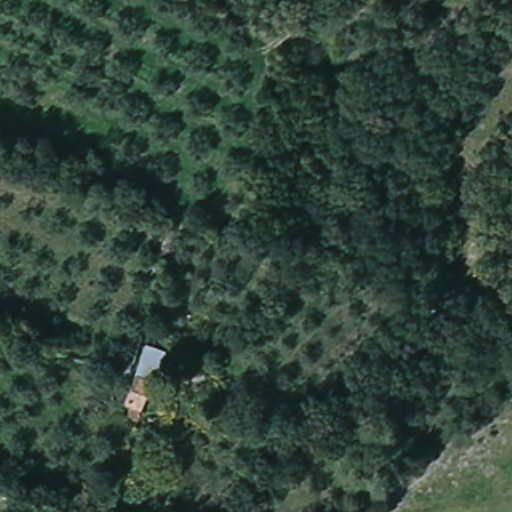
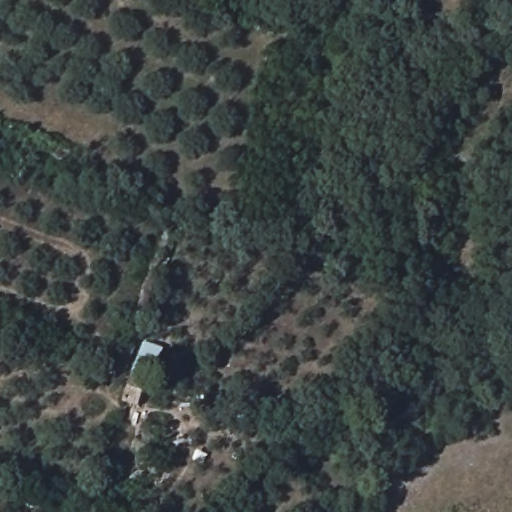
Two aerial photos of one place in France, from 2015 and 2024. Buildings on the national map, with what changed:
unchanged [(131,385),(149,392),(140,420),(121,414),(131,385)]

